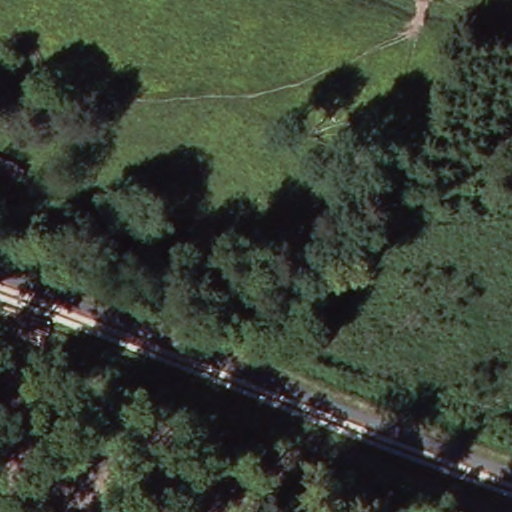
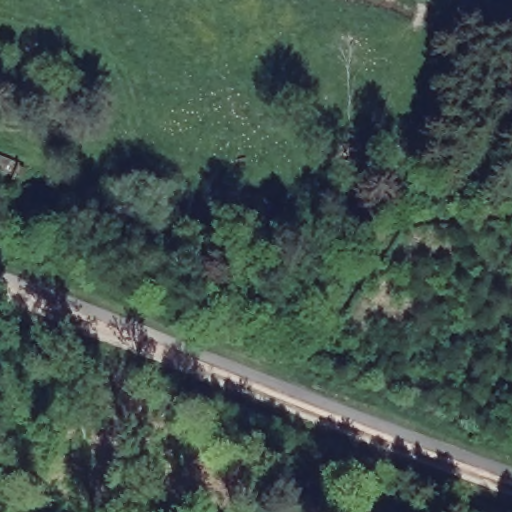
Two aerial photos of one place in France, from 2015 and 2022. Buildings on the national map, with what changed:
unchanged [(14,167),(0,198),(0,161),(14,167)]

